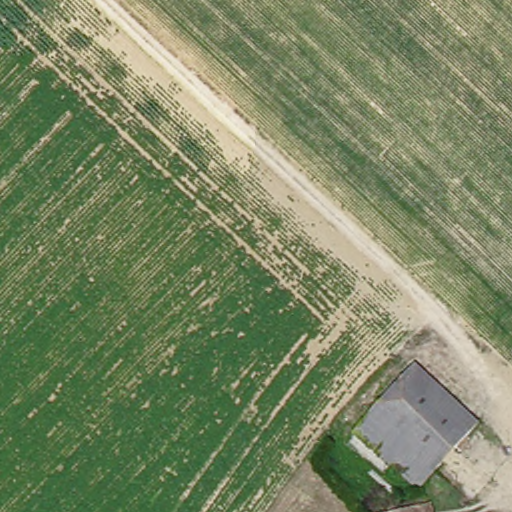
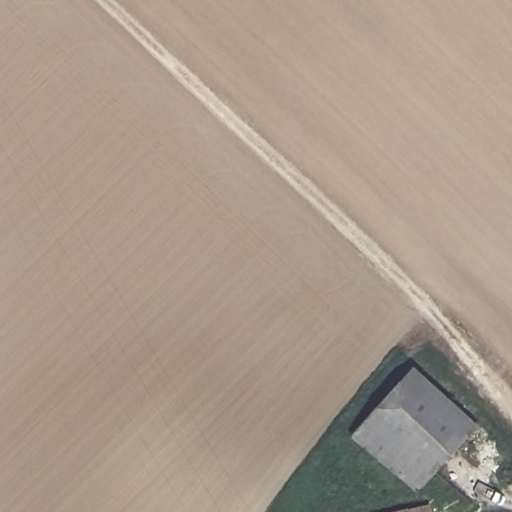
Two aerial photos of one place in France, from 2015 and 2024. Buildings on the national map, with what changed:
unchanged [(410,373),(470,425),(409,492),(343,435),(410,373)]
unchanged [(426,512),(407,512),(425,507),(426,512)]

